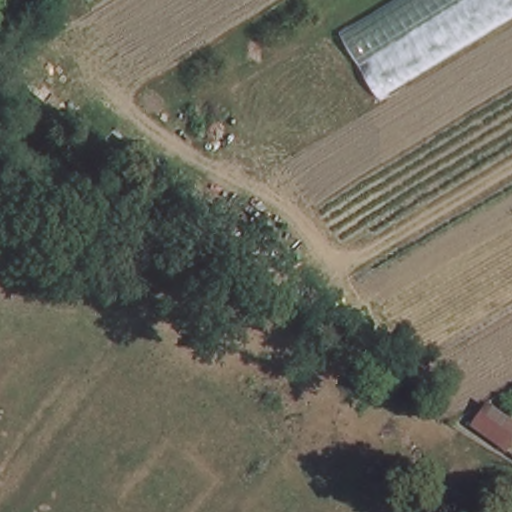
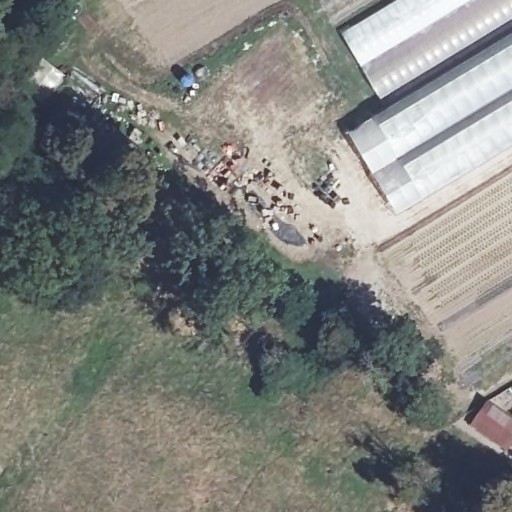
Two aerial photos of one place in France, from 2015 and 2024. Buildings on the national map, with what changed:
unchanged [(512,0),(512,19),(377,98),(340,30),(391,0),(512,0)]
new [(394,212),(347,130),(512,30),(512,140),(394,212)]
unchanged [(512,414),(512,442),(510,444),(477,422),(492,400),(512,414)]

